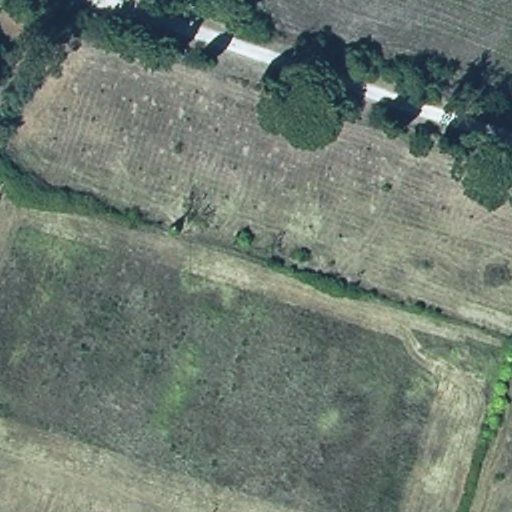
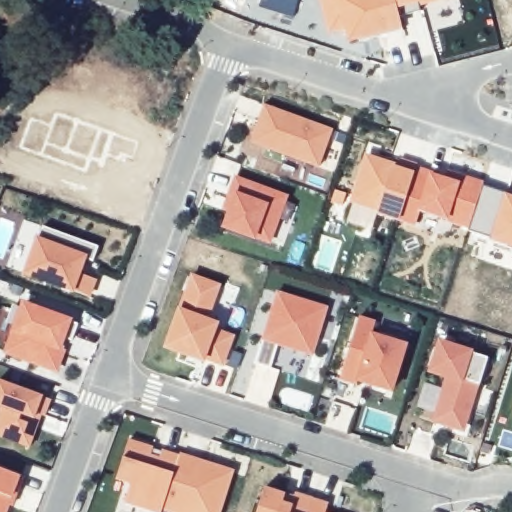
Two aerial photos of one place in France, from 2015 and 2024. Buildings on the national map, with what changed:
new [(258,0),(299,0),(292,20),(256,7),(258,0)]
new [(432,31),(425,5),(415,10),(414,6),(398,10),(402,31),(347,44),(343,31),(328,35),(318,0),(460,0),(465,22),(432,31)]
new [(263,105),(331,130),(317,167),(249,143),(263,105)]
new [(351,203),(349,202),(366,152),(416,170),(399,220),(377,214),(369,234),(345,223),(351,203)]
new [(416,170),(418,165),(462,180),(464,175),(484,182),(483,185),(467,229),(420,211),(415,225),(399,220),(416,170)]
new [(282,247),(267,242),(253,236),(252,238),(223,227),(229,212),(222,210),(229,194),(234,179),(284,197),(282,202),(297,207),(282,247)]
new [(483,185),(505,192),(488,238),(467,229),(483,185)]
new [(505,192),(512,195),(512,248),(488,238),(505,192)]
new [(36,240),(92,260),(87,275),(77,272),(72,287),(87,293),(82,310),(19,287),(36,240)]
new [(190,275),(217,285),(205,320),(215,324),(213,331),(230,337),(220,364),(203,358),(202,361),(165,347),(190,275)]
new [(277,291),(327,307),(311,355),(292,348),(295,339),(287,337),(284,346),(277,344),(270,368),(254,363),(277,291)]
new [(20,300),(75,320),(71,329),(74,330),(57,374),(1,351),(20,300)]
new [(359,318),(375,323),(372,335),(406,345),(392,391),(357,380),(357,383),(340,378),(359,318)]
new [(438,343),(484,357),(475,383),(472,382),(458,428),(434,420),(447,376),(430,371),(438,343)]
new [(0,437),(0,408),(0,407),(0,382),(49,400),(42,416),(40,415),(35,427),(28,447),(0,437)]
new [(152,447),(150,455),(158,457),(160,451),(178,456),(162,507),(160,512),(153,512),(123,503),(129,483),(115,478),(127,440),(152,447)]
new [(209,466),(229,472),(216,512),(176,512),(162,507),(178,456),(203,464),(209,466)]
new [(5,512),(0,512),(0,469),(21,476),(15,493),(10,506),(7,505),(5,512)]
new [(285,490),(327,503),(324,512),(253,512),(262,483),(285,490)]

